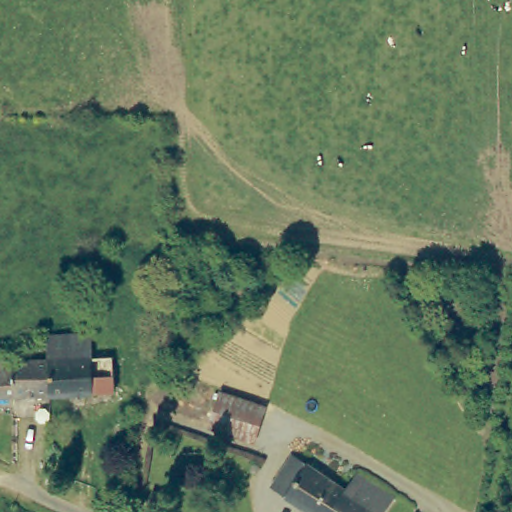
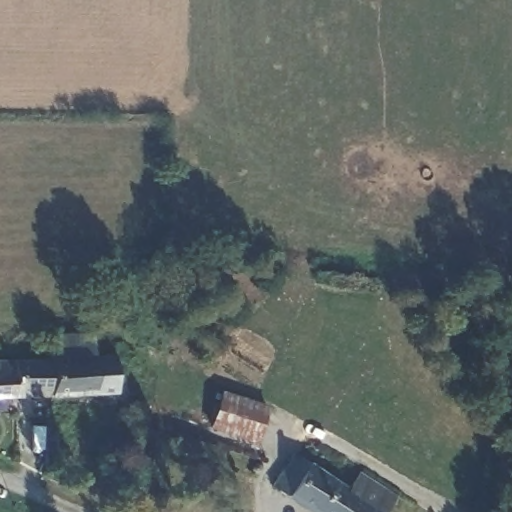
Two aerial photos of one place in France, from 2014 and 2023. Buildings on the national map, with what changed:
unchanged [(51,342),(83,341),(95,340),(95,365),(118,363),(120,394),(58,398),(58,397),(57,365),(53,366),(51,342)]
unchanged [(0,399),(0,366),(53,366),(57,365),(58,397),(0,399)]
unchanged [(210,427),(219,392),(264,407),(255,440),(210,427)]
unchanged [(296,453),(349,491),(362,472),(396,497),(386,512),(314,512),(275,484),(296,453)]

